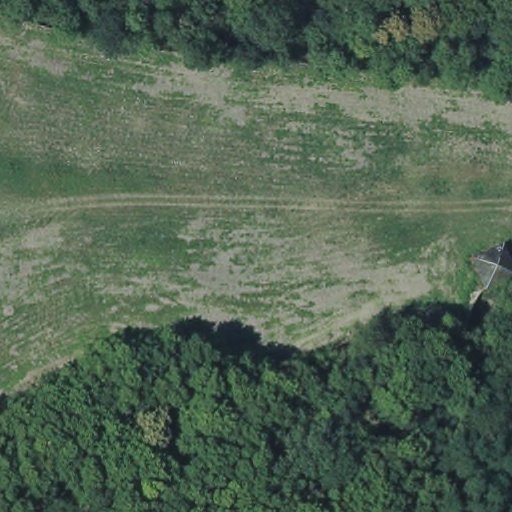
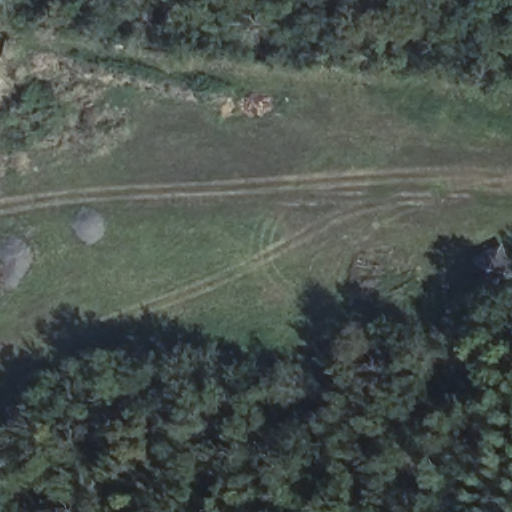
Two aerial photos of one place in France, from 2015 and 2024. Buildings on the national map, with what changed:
unchanged [(468,256),(494,244),(512,280),(483,293),(468,256)]

